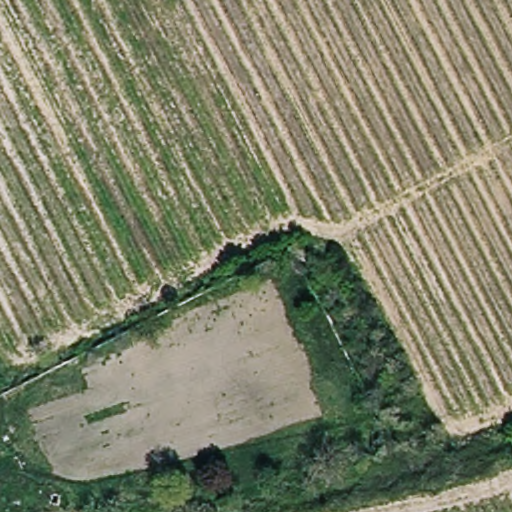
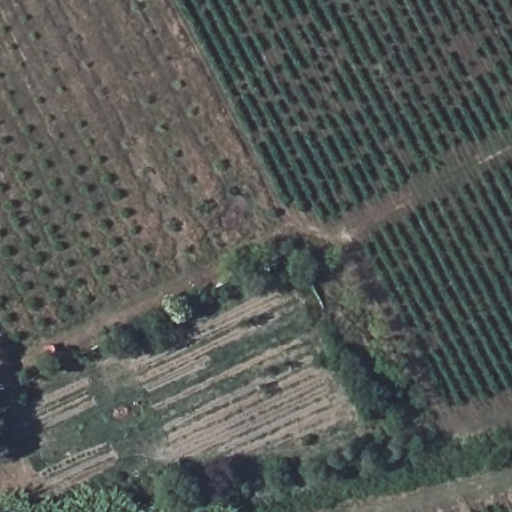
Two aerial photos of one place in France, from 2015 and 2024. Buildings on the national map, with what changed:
[]

